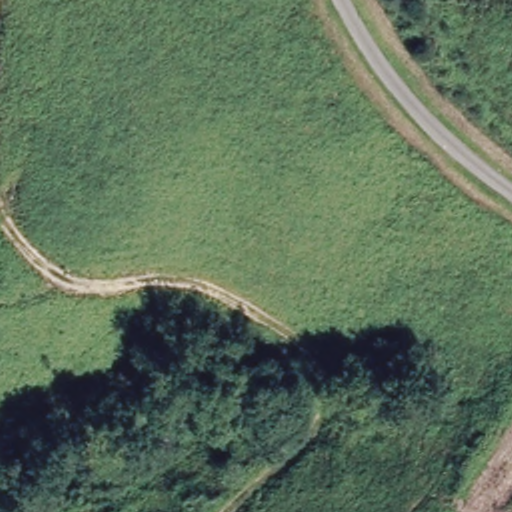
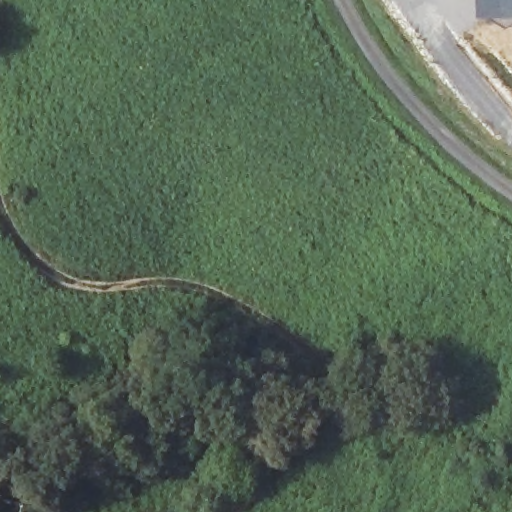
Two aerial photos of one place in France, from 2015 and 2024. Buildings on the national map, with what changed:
new [(512,19),(476,17),(476,0),(512,0),(512,19)]

